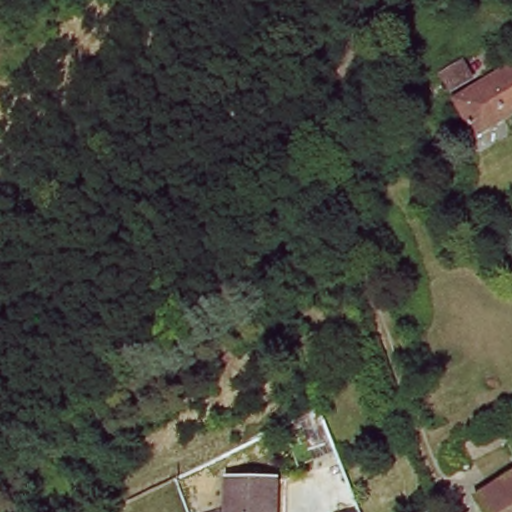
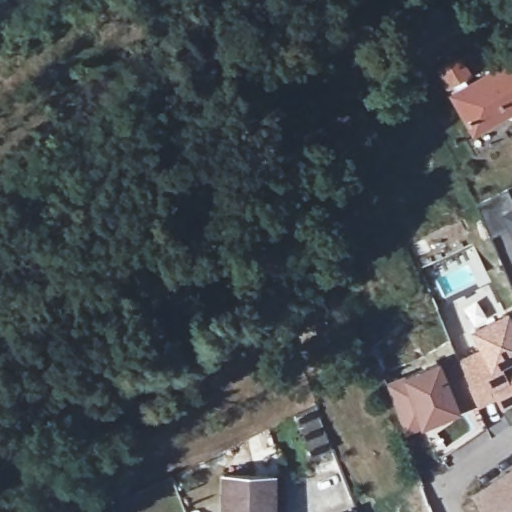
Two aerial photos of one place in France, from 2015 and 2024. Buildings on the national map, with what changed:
unchanged [(512,54),(512,103),(469,129),(447,93),(512,54)]
unchanged [(455,56),(465,70),(442,86),(432,71),(455,56)]
new [(504,235),(492,202),(512,192),(512,231),(504,235)]
new [(470,354),(469,352),(470,352),(473,359),(497,348),(488,328),(512,317),(512,361),(512,363),(512,395),(510,392),(492,401),(487,392),(482,396),(457,412),(449,408),(436,413),(439,420),(419,428),(400,382),(464,356),(470,354)]
unchanged [(319,457),(302,418),(330,404),(345,444),(319,457)]
demolished [(504,425),(506,429),(509,429),(512,435),(512,437),(495,444),(493,439),(495,438),(492,431),(504,425)]
unchanged [(273,512),(224,512),(224,477),(272,477),(273,512)]
unchanged [(512,477),(512,512),(486,512),(478,496),(512,477)]
unchanged [(358,512),(353,512),(357,510),(358,512)]

